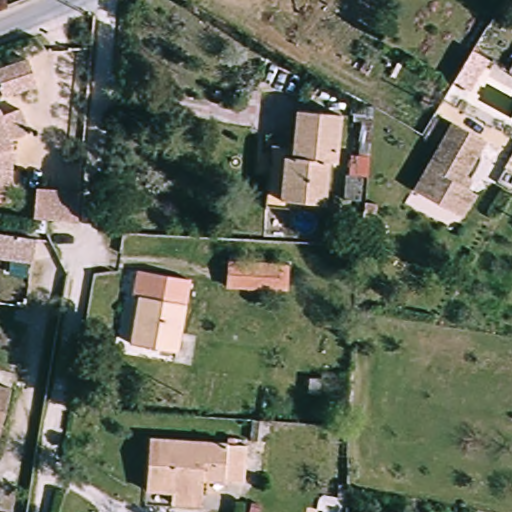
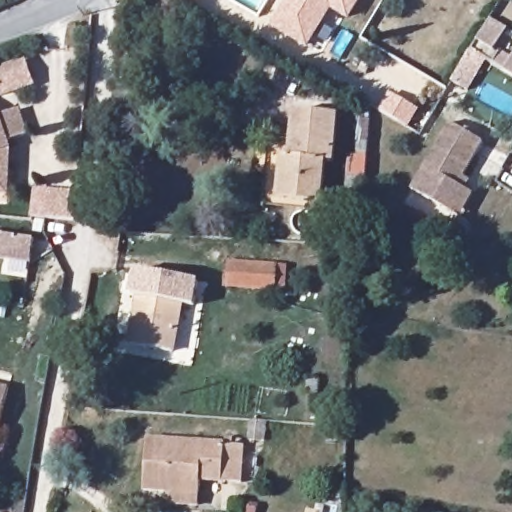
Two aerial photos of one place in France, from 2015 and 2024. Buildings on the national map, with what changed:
new [(332,10),(309,48),(270,26),(285,0),(361,0),(349,20),(332,10)]
unchanged [(31,86),(0,95),(0,67),(23,60),(31,86)]
unchanged [(512,86),(512,96),(508,94),(512,86)]
unchanged [(17,109),(26,136),(4,142),(10,161),(9,191),(0,190),(0,114),(17,109)]
unchanged [(309,116),(335,118),(328,167),(322,172),(321,207),(282,204),(287,151),(306,150),(309,116)]
unchanged [(432,146),(446,122),(480,143),(466,168),(432,146)]
unchanged [(281,215),(259,214),(264,140),(287,141),(287,151),(282,204),(281,215)]
unchanged [(432,205),(406,189),(432,146),(466,168),(461,177),(471,184),(459,204),(451,217),(432,205)]
unchanged [(77,195),(75,223),(33,220),(35,192),(77,195)]
unchanged [(35,262),(0,260),(0,236),(36,239),(35,262)]
unchanged [(182,300),(176,301),(169,353),(126,346),(134,297),(127,295),(129,271),(186,279),(182,300)]
unchanged [(274,307),(223,303),(225,275),(277,279),(274,307)]
unchanged [(14,393),(0,437),(0,388),(14,393)]
unchanged [(165,510),(166,495),(140,493),(146,436),(245,445),(241,486),(221,484),(221,479),(201,477),(199,497),(198,511),(165,510)]

